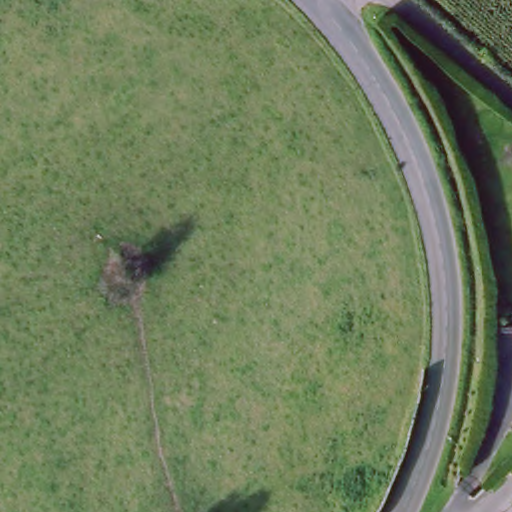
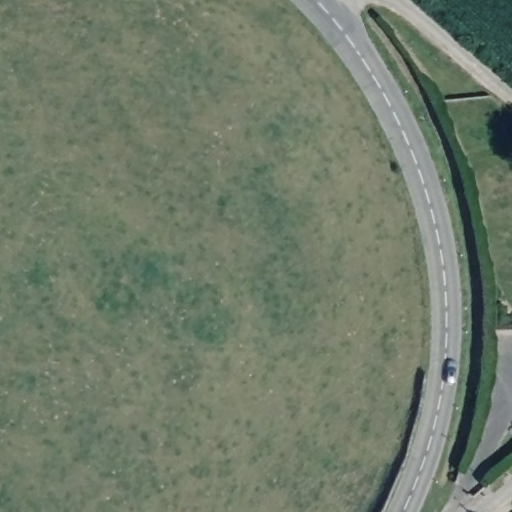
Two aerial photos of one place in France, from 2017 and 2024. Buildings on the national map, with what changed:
[]

